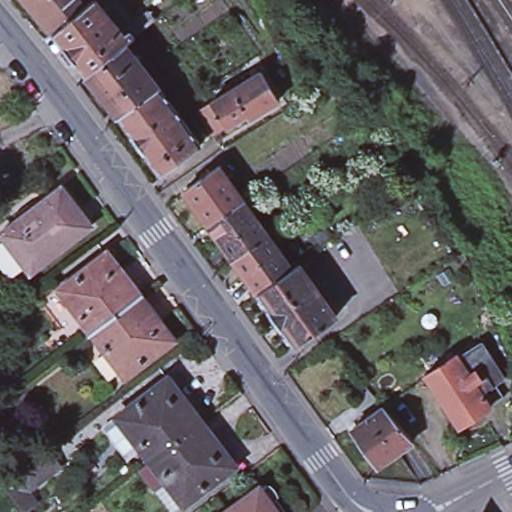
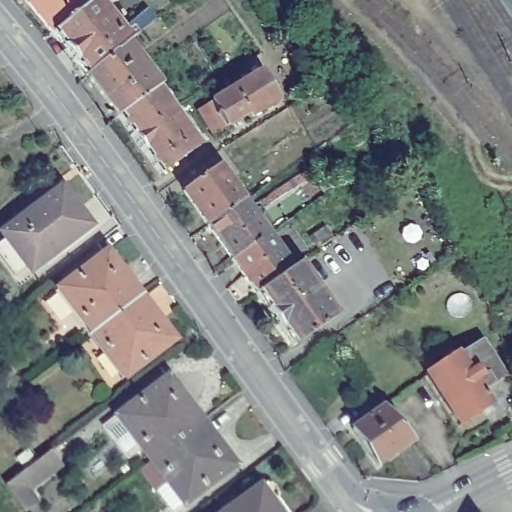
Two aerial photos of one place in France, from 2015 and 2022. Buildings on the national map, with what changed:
unchanged [(77,4),(45,32),(17,0),(74,0),(77,4)]
unchanged [(93,5),(116,34),(122,30),(120,27),(142,9),(149,18),(126,36),(121,40),(118,43),(78,76),(45,32),(77,4),(83,0),(98,0),(93,5)]
unchanged [(150,86),(109,116),(78,76),(118,43),(150,86)]
unchanged [(285,58),(300,83),(283,93),(269,68),(285,58)]
unchanged [(195,104),(207,96),(260,65),(277,95),(244,114),(242,110),(222,122),(210,129),(195,104)]
unchanged [(150,86),(192,145),(152,172),(109,116),(150,86)]
unchanged [(204,224),(180,189),(215,165),(240,199),(204,224)]
unchanged [(5,230),(66,185),(95,225),(35,270),(5,230)]
unchanged [(204,224),(240,199),(265,234),(228,258),(204,224)]
unchanged [(251,292),(228,258),(265,234),(289,267),(251,292)]
unchanged [(127,268),(125,270),(142,295),(93,331),(62,287),(113,250),(127,268)]
unchanged [(332,316),(288,345),(251,292),(289,267),(296,262),(332,316)]
unchanged [(126,376),(93,331),(142,295),(160,320),(162,318),(177,339),(126,376)]
unchanged [(486,399),(455,418),(421,369),(452,348),(454,350),(475,335),(500,372),(490,378),(497,391),(486,399)]
unchanged [(143,461),(153,453),(157,451),(141,429),(138,432),(143,440),(131,449),(108,416),(173,369),(187,389),(186,390),(204,416),(222,441),(225,439),(241,462),(191,498),(173,472),(158,482),(143,461)]
unchanged [(379,465),(353,428),(386,406),(416,440),(379,465)]
unchanged [(57,465),(25,488),(34,501),(21,511),(3,484),(48,451),(57,465)]
unchanged [(235,504),(259,486),(260,488),(265,484),(286,512),(228,512),(236,506),(235,504)]

